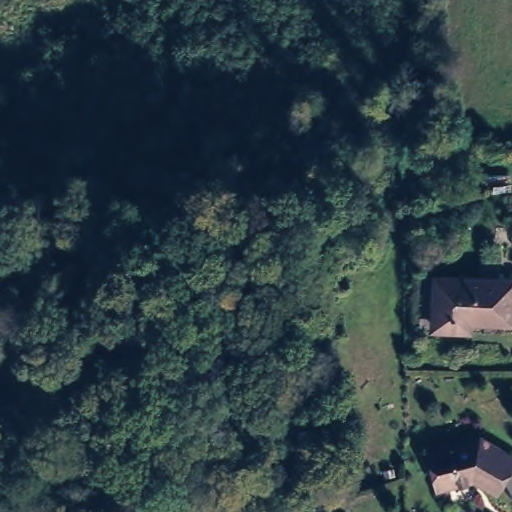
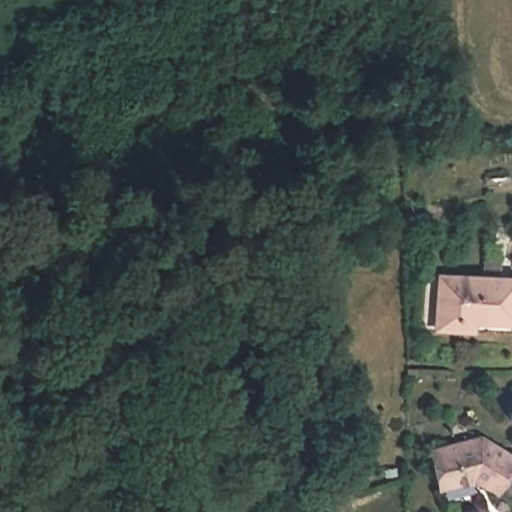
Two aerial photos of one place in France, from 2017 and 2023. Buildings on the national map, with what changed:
unchanged [(453,332),(430,332),(432,279),(506,281),(503,321),(466,322),(466,333),(453,332)]
unchanged [(423,452),(470,441),(510,460),(493,485),(471,475),(471,480),(431,488),(423,452)]

